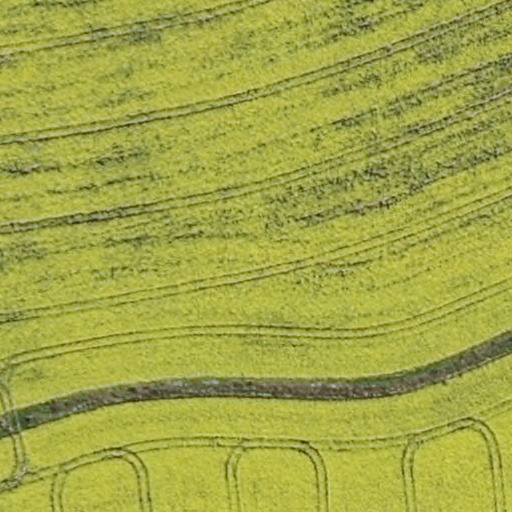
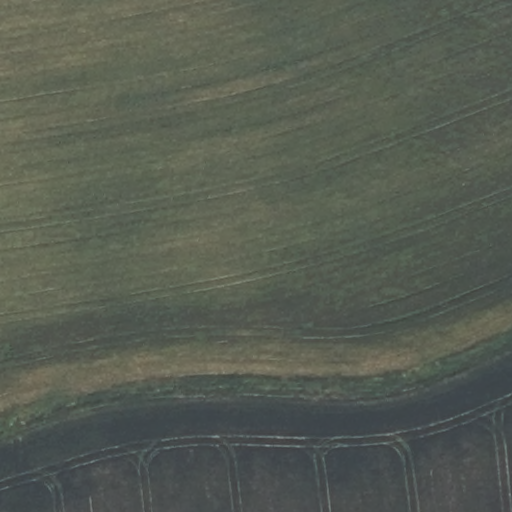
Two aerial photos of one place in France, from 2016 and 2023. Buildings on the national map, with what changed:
[]

